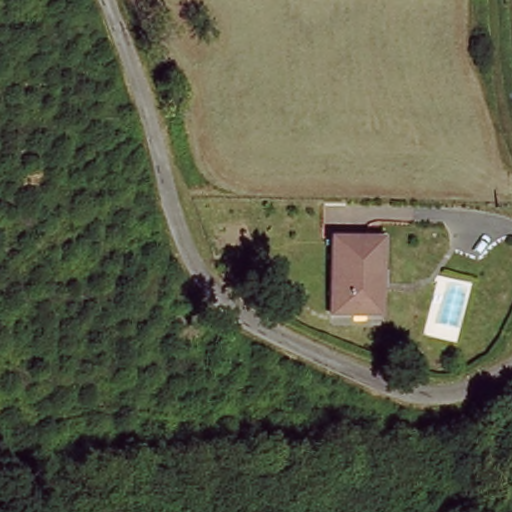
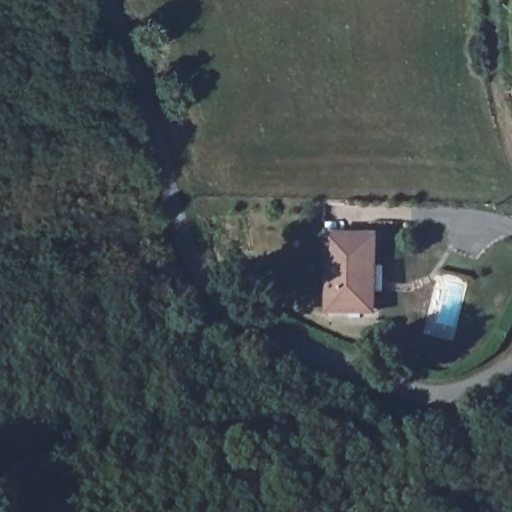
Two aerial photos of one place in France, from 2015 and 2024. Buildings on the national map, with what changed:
unchanged [(380,316),(372,316),(335,315),(336,244),(384,243),(384,274),(384,312),(380,316)]

